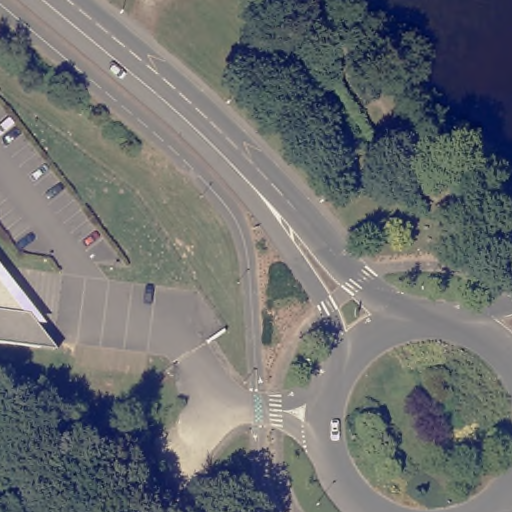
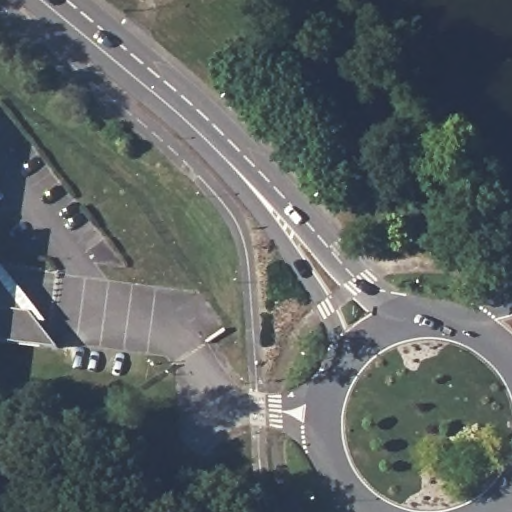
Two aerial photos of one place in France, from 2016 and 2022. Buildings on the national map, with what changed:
unchanged [(20,304),(28,306),(52,338),(0,333),(0,277),(20,304)]

